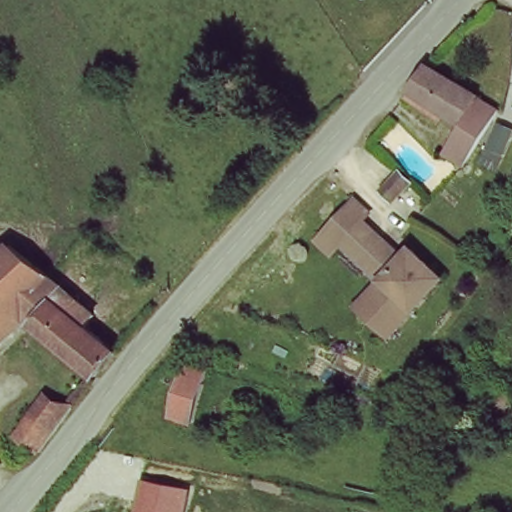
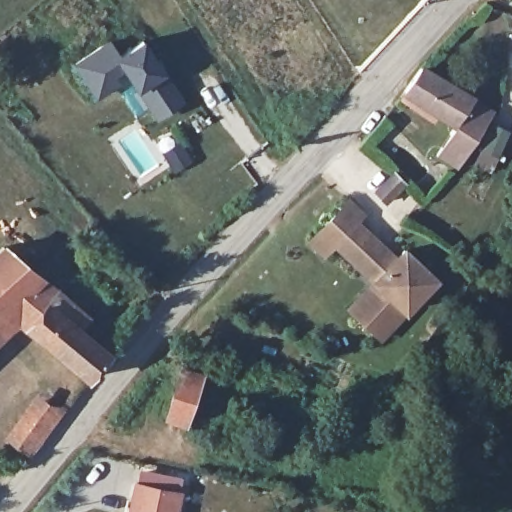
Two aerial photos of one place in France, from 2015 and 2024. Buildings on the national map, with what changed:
new [(156,117),(129,76),(96,96),(72,62),(108,38),(120,53),(142,38),(164,70),(184,100),(156,117)]
unchanged [(443,145),(459,121),(440,109),(434,117),(405,97),(410,90),(408,89),(426,64),(496,109),(466,160),(462,165),(440,150),(443,145)]
unchanged [(394,198),(383,188),(397,173),(400,170),(412,179),(408,183),(394,198)]
unchanged [(333,245),(322,256),(309,243),(350,202),(362,215),(355,223),(394,263),(404,254),(432,283),(378,340),(356,318),(347,309),(373,285),(333,245)]
unchanged [(75,325),(108,351),(87,377),(21,326),(12,335),(0,326),(0,248),(3,250),(83,314),(75,325)]
unchanged [(186,426),(168,415),(183,370),(200,375),(186,426)]
unchanged [(8,433),(36,400),(68,408),(32,452),(8,433)]
unchanged [(127,512),(133,482),(182,492),(178,512),(127,512)]

